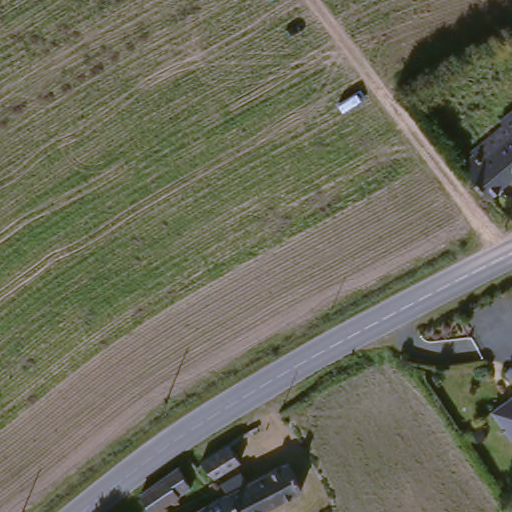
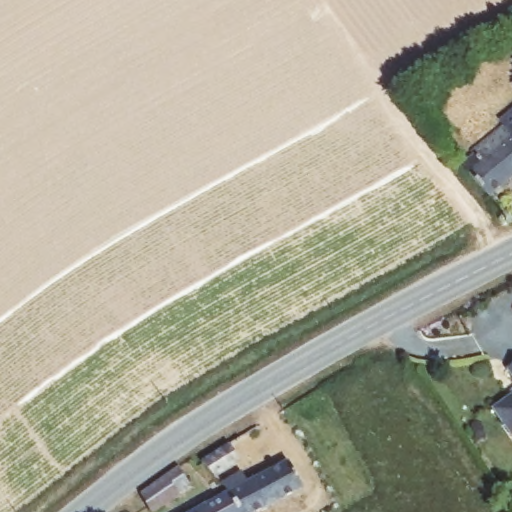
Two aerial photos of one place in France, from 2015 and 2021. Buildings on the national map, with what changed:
unchanged [(481,150),(479,146),(512,120),(512,183),(496,195),(473,166),(476,161),(472,156),(481,150)]
unchanged [(512,398),(512,421),(502,405),(512,398)]
unchanged [(236,438),(243,451),(233,459),(233,462),(208,477),(196,462),(236,438)]
unchanged [(226,494),(221,488),(241,475),(247,482),(288,461),(304,490),(263,512),(240,512),(226,494)]
unchanged [(146,489),(186,464),(197,483),(158,510),(153,503),(146,489)]
unchanged [(240,512),(194,512),(226,494),(240,512)]

